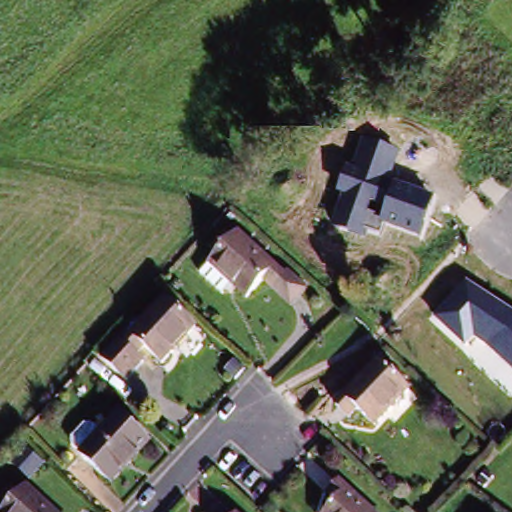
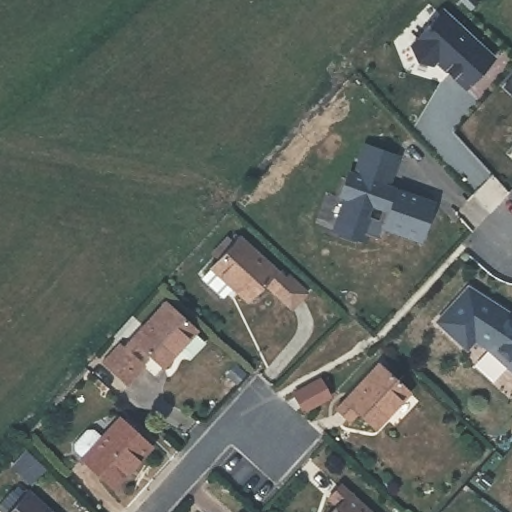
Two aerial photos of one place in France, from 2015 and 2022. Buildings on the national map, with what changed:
new [(462,96),(433,69),(430,72),(415,68),(409,54),(441,20),(491,66),(462,96)]
unchanged [(345,201),(337,199),(349,166),(361,169),(369,144),(401,155),(391,186),(435,201),(422,241),(385,229),(382,237),(369,234),(367,242),(336,230),(345,201)]
new [(512,154),(512,157),(510,156),(512,154)]
unchanged [(282,297),(272,288),(257,306),(243,293),(237,299),(234,296),(229,299),(209,278),(224,262),(217,256),(233,239),(240,246),(245,240),(294,283),(295,282),(315,299),(302,313),(282,297)]
unchanged [(512,314),(512,374),(475,342),(467,351),(435,320),(470,286),(512,314)]
unchanged [(130,390),(106,367),(164,305),(195,334),(165,366),(147,352),(140,360),(148,369),(130,390)]
unchanged [(385,426),(365,410),(357,417),(343,406),(376,369),(409,398),(385,426)]
unchanged [(116,492),(87,465),(124,425),(153,452),(116,492)]
unchanged [(332,508),(324,500),(334,488),(360,512),(329,512),(332,508)]
unchanged [(27,498),(43,512),(15,512),(27,498)]

